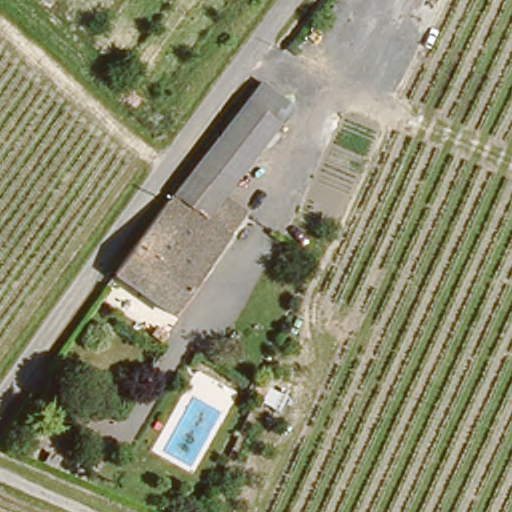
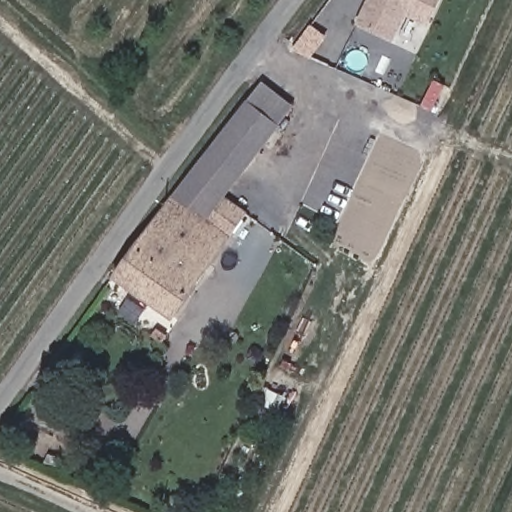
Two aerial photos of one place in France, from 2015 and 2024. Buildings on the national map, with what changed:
new [(405,15),(393,41),(358,25),(366,9),(370,0),(439,0),(428,25),(405,15)]
unchanged [(283,110),(225,188),(212,205),(179,184),(184,176),(235,109),(252,86),(283,110)]
unchanged [(250,205),(169,318),(112,278),(179,184),(212,205),(225,188),(250,205)]
demolished [(247,294),(231,320),(224,316),(241,290),(247,294)]
unchanged [(225,373),(212,365),(221,350),(233,357),(225,373)]

